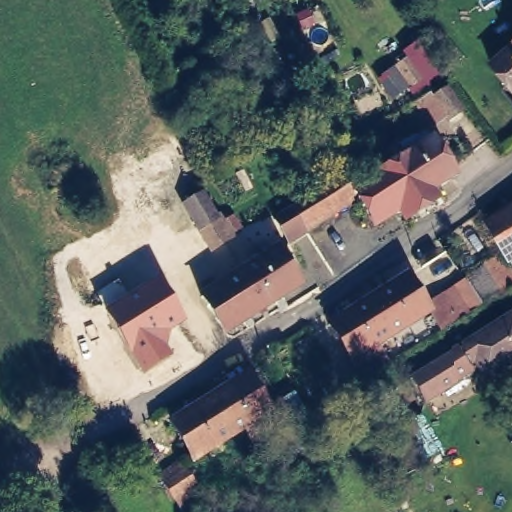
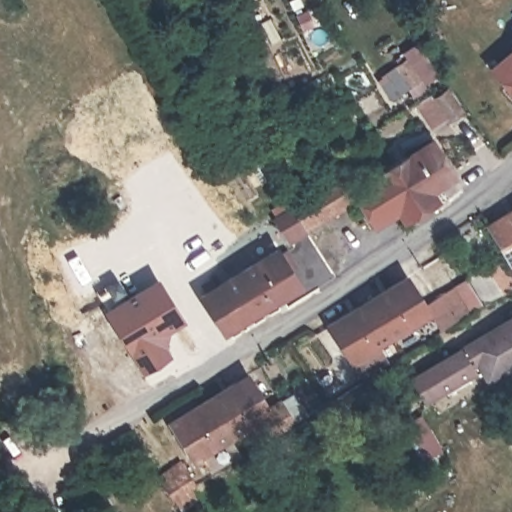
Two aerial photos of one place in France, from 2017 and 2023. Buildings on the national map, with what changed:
unchanged [(495,70),(512,55),(512,89),(495,70)]
unchanged [(460,111),(446,120),(430,99),(445,90),(460,111)]
unchanged [(397,169),(435,145),(457,179),(434,195),(440,205),(425,215),(397,169)]
unchanged [(286,236),(280,239),(275,231),(280,227),(278,224),(297,212),(350,180),(350,181),(364,173),(372,185),(397,169),(425,215),(408,225),(400,216),(377,230),(358,199),(308,230),(290,241),(286,236)]
unchanged [(270,207),(265,199),(282,188),(287,196),(270,207)]
unchanged [(232,226),(222,232),(223,233),(208,243),(203,246),(195,232),(190,225),(192,224),(190,221),(177,200),(192,191),(204,210),(206,214),(210,212),(215,220),(225,213),(232,226)]
unchanged [(507,262),(486,226),(512,210),(512,260),(507,262)]
unchanged [(245,268),(279,247),(282,252),(289,248),(298,262),(292,266),(302,282),(267,304),(266,302),(245,268)]
unchanged [(483,304),(467,279),(498,259),(512,280),(512,286),(483,304)]
unchanged [(227,329),(205,294),(245,268),(266,302),(267,304),(227,329)]
unchanged [(328,325),(403,278),(425,314),(373,345),(385,364),(362,378),(328,325)]
unchanged [(170,329),(165,348),(171,354),(143,371),(103,310),(160,279),(185,321),(170,329)]
unchanged [(425,304),(462,280),(479,306),(458,319),(447,327),(442,331),(425,304)]
unchanged [(468,362),(472,367),(425,396),(412,376),(467,342),(512,314),(512,359),(487,374),(476,357),(468,362)]
unchanged [(240,377),(260,410),(275,402),(289,423),(252,446),(238,426),(225,435),(203,400),(240,377)]
unchanged [(225,435),(188,458),(167,423),(203,400),(225,435)]
unchanged [(170,461),(177,458),(195,486),(187,490),(191,495),(201,512),(180,512),(175,502),(160,477),(170,461)]

